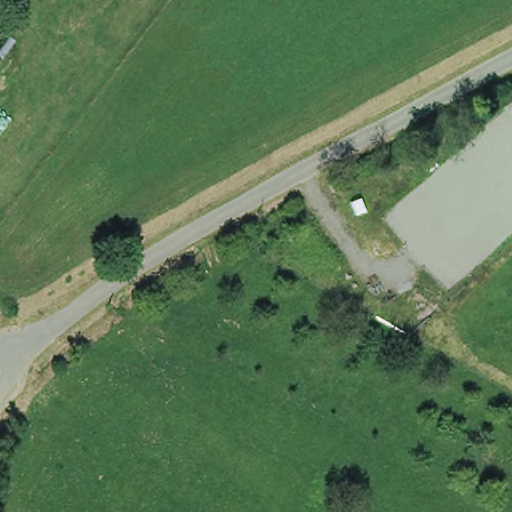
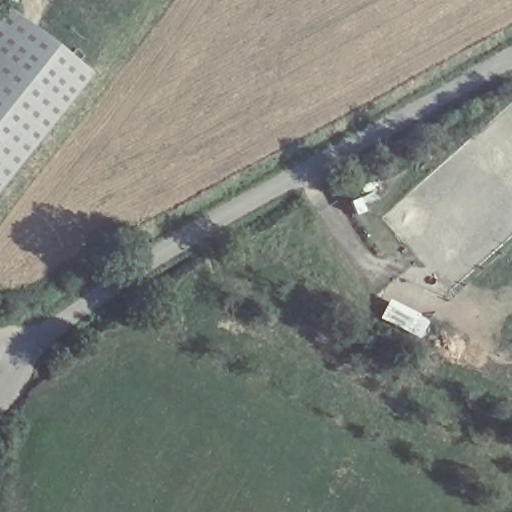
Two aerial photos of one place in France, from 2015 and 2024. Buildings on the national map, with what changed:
new [(10,12),(99,76),(0,196),(0,24),(10,12)]

